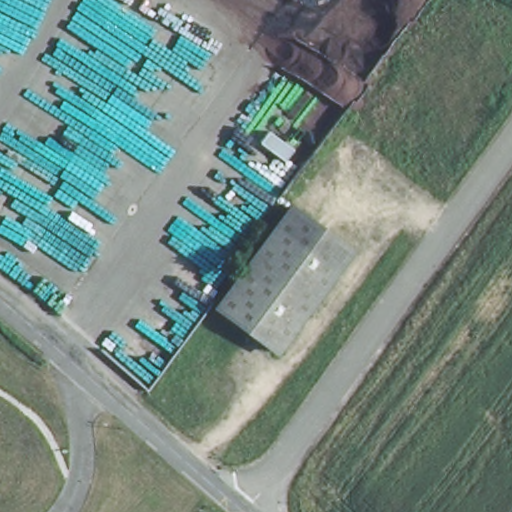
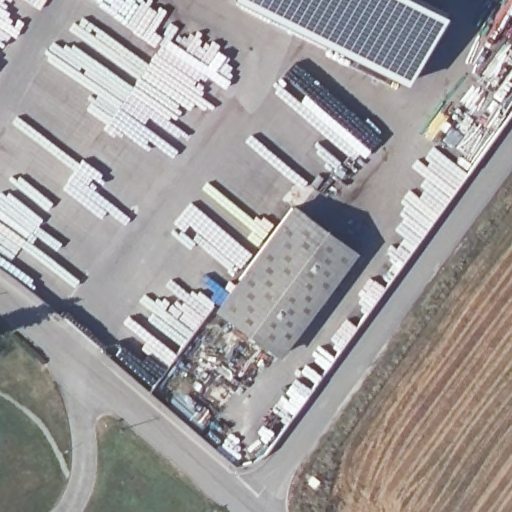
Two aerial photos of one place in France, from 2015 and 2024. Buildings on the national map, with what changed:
new [(442,9),(406,84),(297,31),(237,0),(423,0),(442,9)]
unchanged [(358,249),(279,354),(216,302),(292,202),(358,249)]

